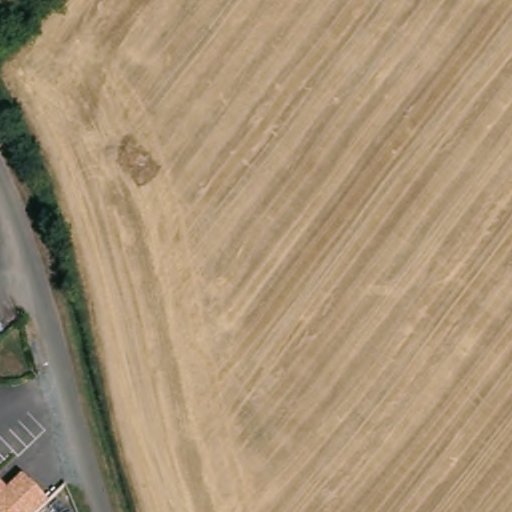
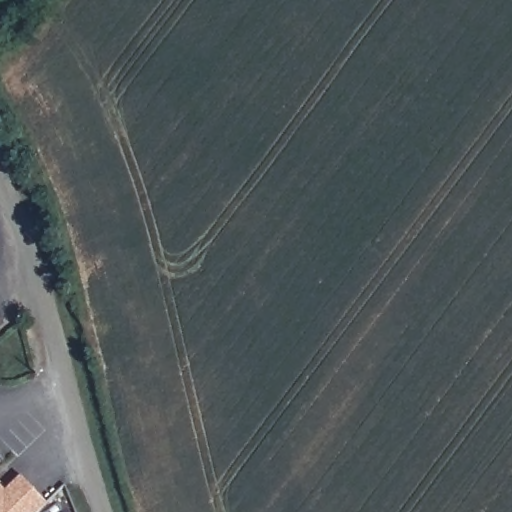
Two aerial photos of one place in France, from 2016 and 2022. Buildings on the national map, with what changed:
unchanged [(18,474),(47,505),(40,512),(0,512),(0,484),(4,488),(18,474)]

